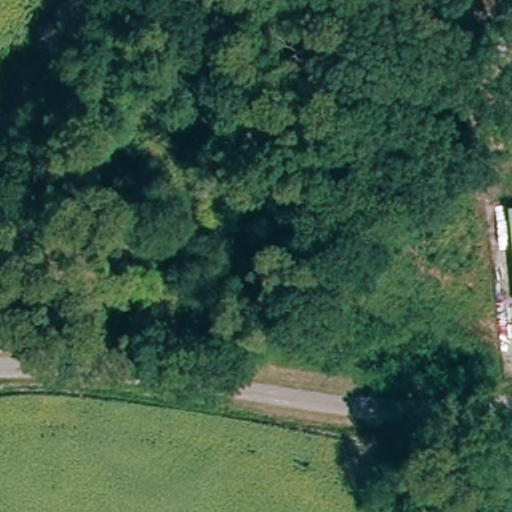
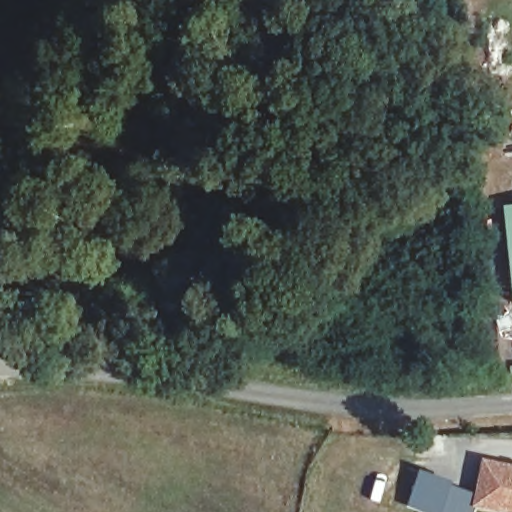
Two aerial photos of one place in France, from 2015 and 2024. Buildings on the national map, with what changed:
unchanged [(512,206),(512,261),(507,207),(512,206)]
new [(505,512),(476,507),(486,458),(512,463),(512,512),(505,512)]
new [(475,512),(421,512),(409,507),(422,471),(455,483),(479,495),(476,507),(475,512)]

